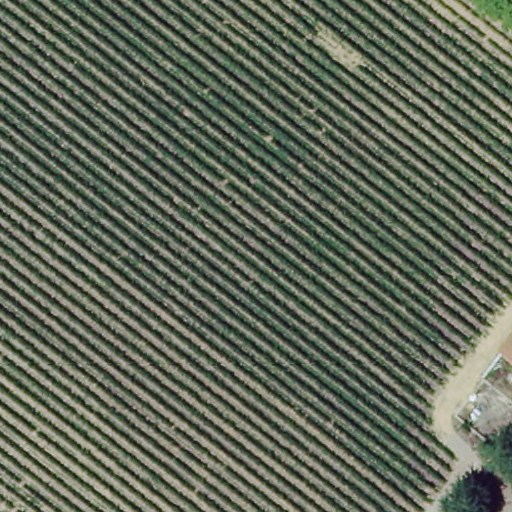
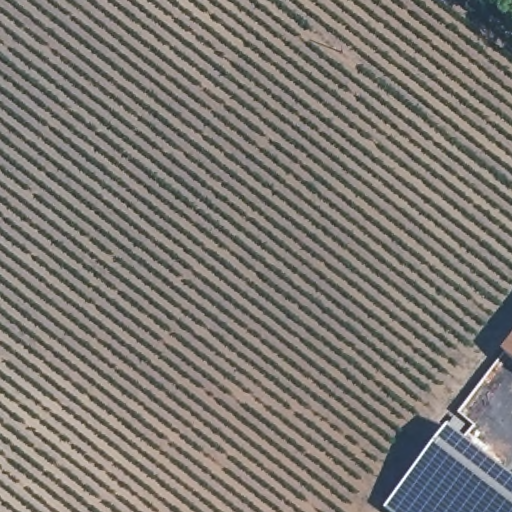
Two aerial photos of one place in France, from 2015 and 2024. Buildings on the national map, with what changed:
unchanged [(496,348),(512,327),(512,361),(496,348)]
new [(385,508),(456,417),(467,425),(459,434),(512,476),(512,512),(390,512),(385,508)]

